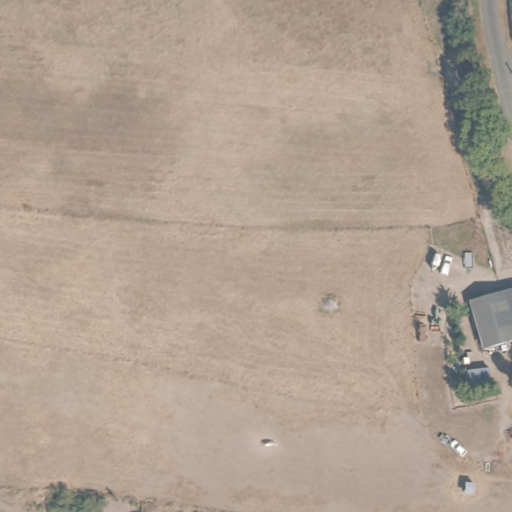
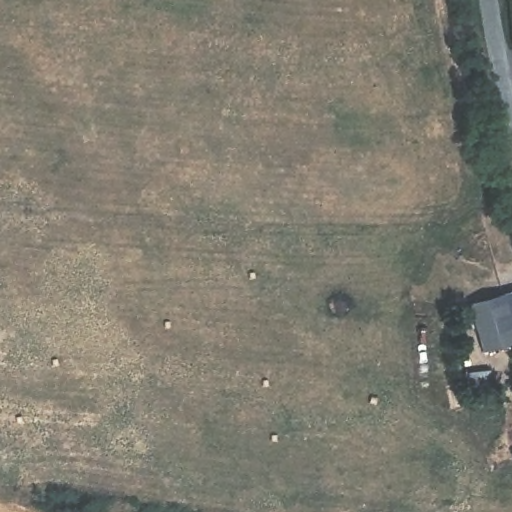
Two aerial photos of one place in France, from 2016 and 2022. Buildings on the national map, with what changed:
unchanged [(472,303),(486,298),(485,294),(503,292),(506,307),(512,305),(512,345),(484,349),(472,303)]

